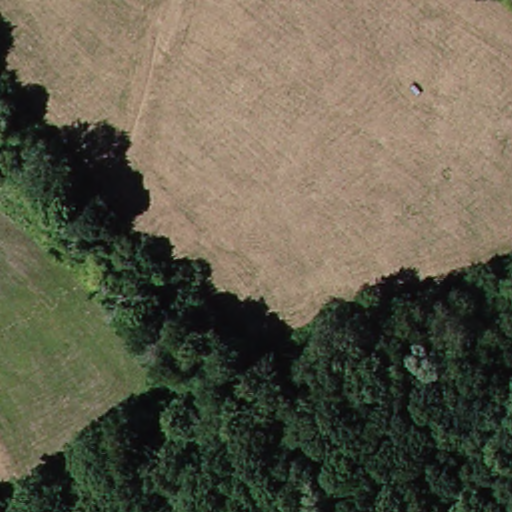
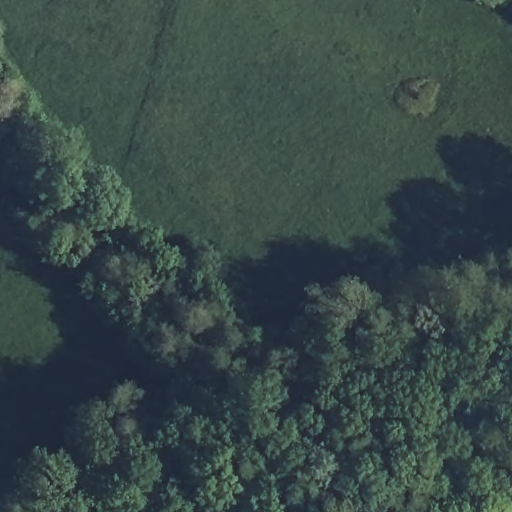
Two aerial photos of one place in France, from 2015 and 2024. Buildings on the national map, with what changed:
[]

